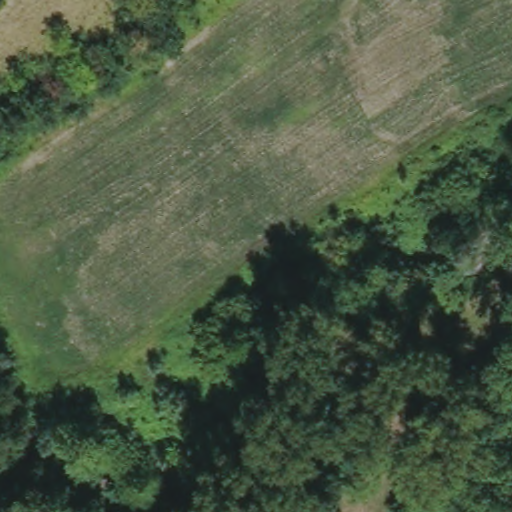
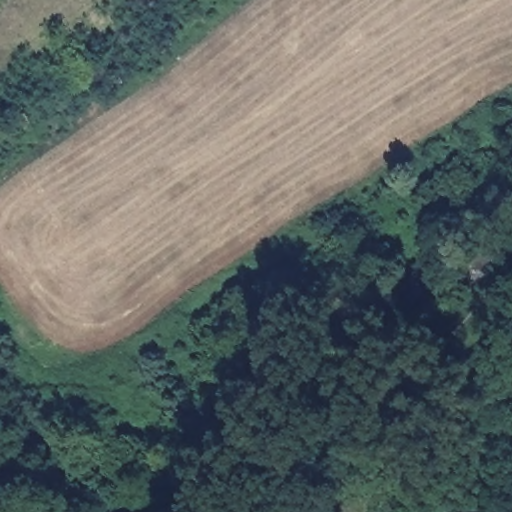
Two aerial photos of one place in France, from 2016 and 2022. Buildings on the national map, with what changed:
[]

